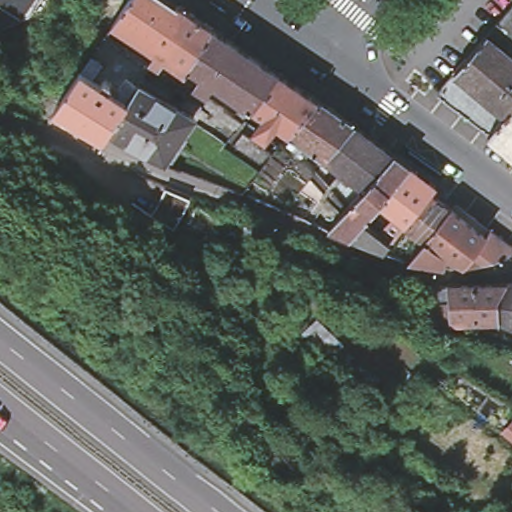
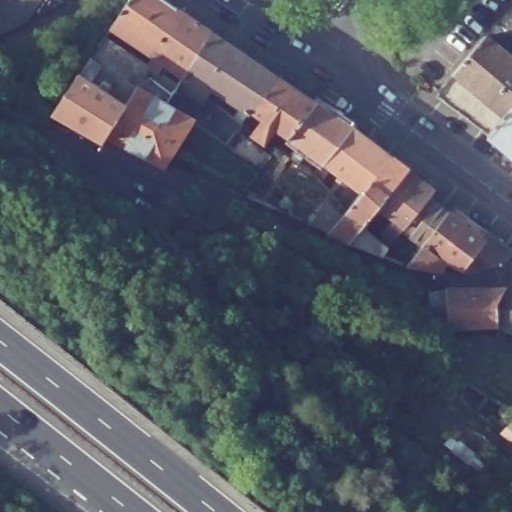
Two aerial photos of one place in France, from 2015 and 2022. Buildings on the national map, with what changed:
unchanged [(21,23),(0,10),(0,0),(37,0),(21,23)]
unchanged [(179,7),(149,53),(107,24),(123,0),(168,0),(179,7)]
unchanged [(479,125),(496,107),(444,64),(477,26),(499,0),(512,0),(512,153),(479,126),(479,125)]
unchanged [(209,28),(181,73),(160,59),(153,68),(144,61),(149,53),(179,7),(209,28)]
unchanged [(223,121),(208,111),(211,110),(202,104),(201,98),(188,89),(190,86),(178,78),(181,73),(209,28),(275,72),(313,98),(285,133),(273,124),(261,139),(249,131),(252,127),(239,119),(233,129),(214,152),(204,144),(223,121)]
unchanged [(496,107),(479,125),(427,85),(428,83),(431,80),(444,64),(496,107)]
unchanged [(99,136),(50,109),(66,85),(76,70),(96,83),(99,78),(106,81),(103,87),(110,92),(123,76),(132,82),(133,81),(163,99),(132,147),(103,131),(99,136)]
unchanged [(306,150),(304,153),(298,149),(301,145),(285,133),(313,98),(349,123),(388,153),(358,189),(328,166),(318,176),(311,169),(319,159),(306,150)]
unchanged [(188,113),(161,163),(132,147),(163,99),(188,113)]
unchanged [(256,169),(226,147),(239,129),(269,152),(256,169)]
unchanged [(383,233),(390,237),(385,243),(379,253),(346,240),(324,230),(344,206),(340,202),(344,197),(349,201),(358,189),(388,153),(406,166),(376,203),(359,223),(379,238),(383,233)]
unchanged [(432,186),(426,193),(403,223),(376,203),(406,166),(432,186)]
unchanged [(166,201),(162,208),(143,197),(149,182),(168,193),(170,191),(192,201),(186,215),(166,201)]
unchanged [(403,223),(426,193),(447,208),(419,242),(399,227),(403,223)]
unchanged [(419,242),(447,208),(469,225),(473,220),(485,229),(486,229),(512,247),(504,256),(489,262),(461,270),(461,265),(459,264),(437,255),(433,268),(404,262),(408,257),(398,251),(394,248),(399,241),(404,244),(414,250),(419,242)]
unchanged [(444,297),(449,296),(449,281),(505,278),(498,294),(498,317),(451,320),(444,321),(434,303),(430,282),(444,282),(444,297)]
unchanged [(512,279),(512,323),(498,317),(498,294),(505,278),(512,279)]

